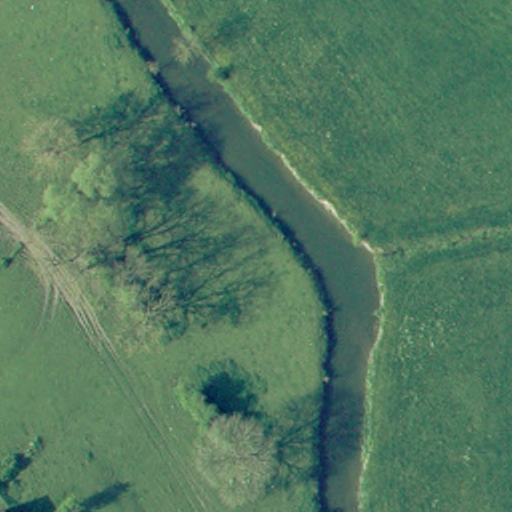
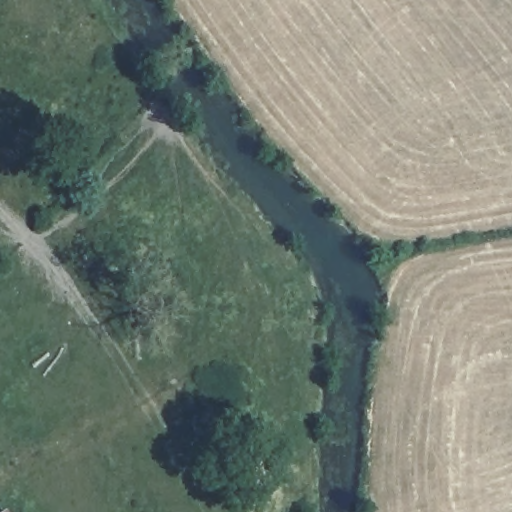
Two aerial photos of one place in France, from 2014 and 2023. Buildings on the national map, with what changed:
unchanged [(12,512),(0,512),(0,506),(5,503),(12,512)]

